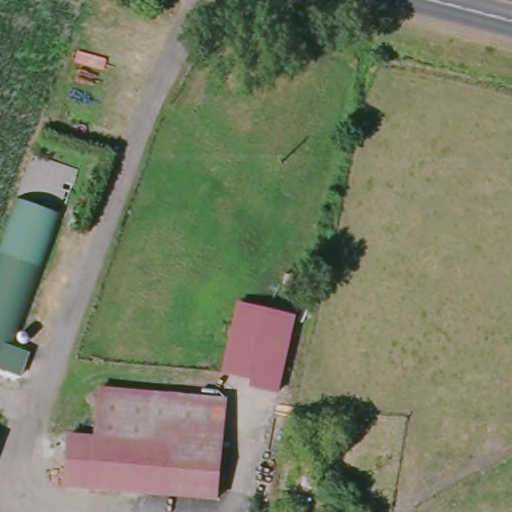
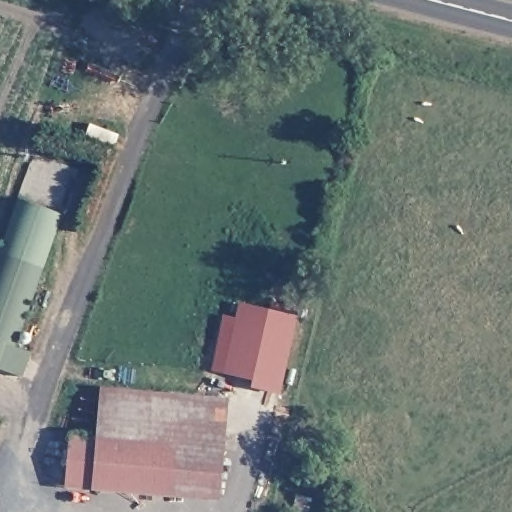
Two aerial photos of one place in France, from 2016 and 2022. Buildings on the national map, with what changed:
unchanged [(51,217),(35,262),(0,248),(0,238),(14,200),(51,217)]
unchanged [(42,265),(16,340),(28,345),(19,372),(0,365),(0,248),(35,262),(42,265)]
unchanged [(282,393),(252,387),(254,381),(226,373),(240,303),(300,317),(282,393)]
unchanged [(216,500),(98,489),(92,488),(96,437),(100,390),(223,400),(216,500)]
unchanged [(64,486),(67,436),(96,437),(92,488),(64,486)]

